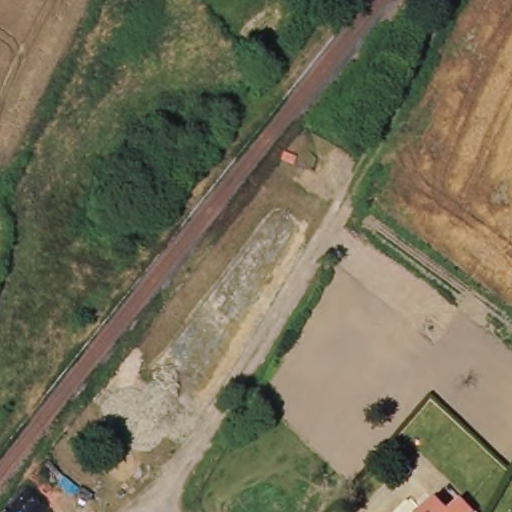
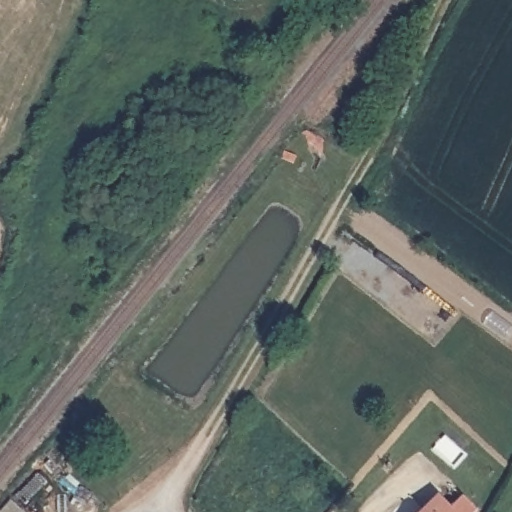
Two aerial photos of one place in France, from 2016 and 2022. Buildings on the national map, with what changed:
unchanged [(434,500),(447,512),(423,512),(426,509),(428,506),(434,500)]

